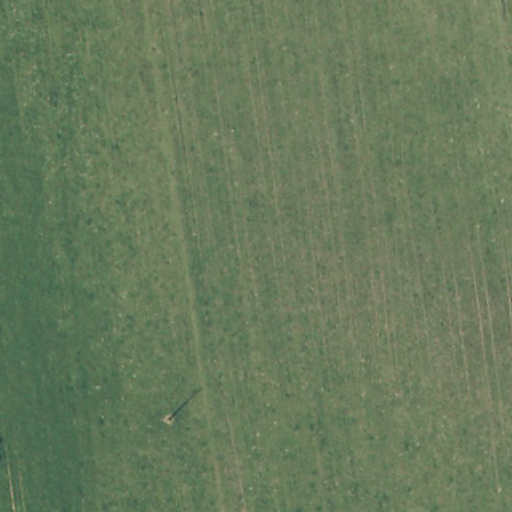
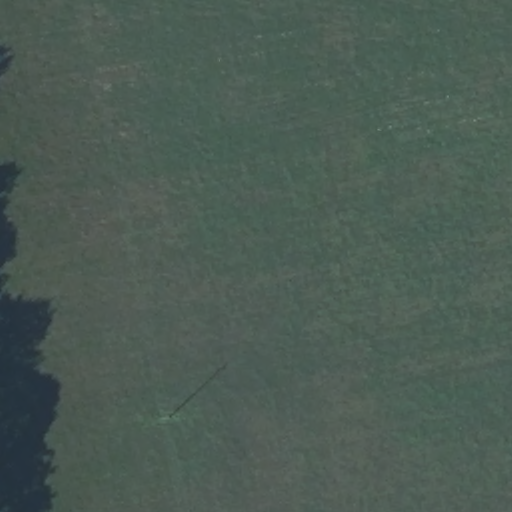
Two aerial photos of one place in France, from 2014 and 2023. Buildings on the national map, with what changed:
[]

